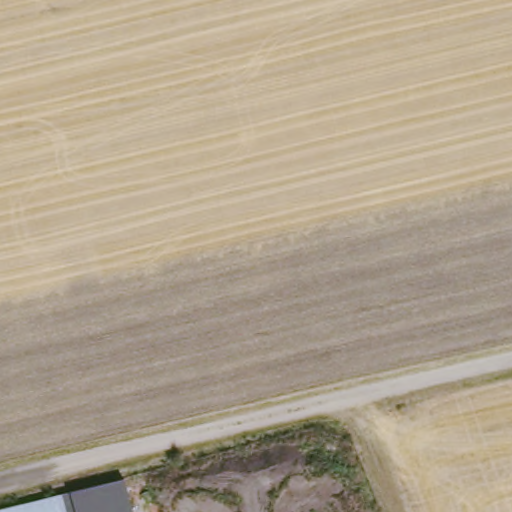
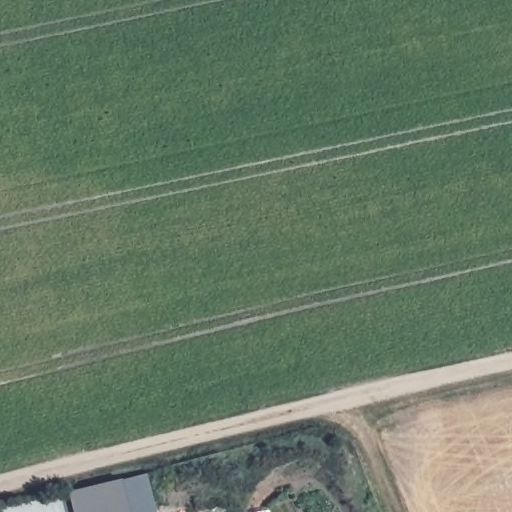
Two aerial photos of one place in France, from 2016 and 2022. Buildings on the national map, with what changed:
unchanged [(127,505),(101,512),(65,512),(60,495),(121,480),(127,505)]
unchanged [(60,495),(65,512),(0,512),(0,510),(60,495)]
unchanged [(127,505),(129,512),(101,512),(127,505)]

